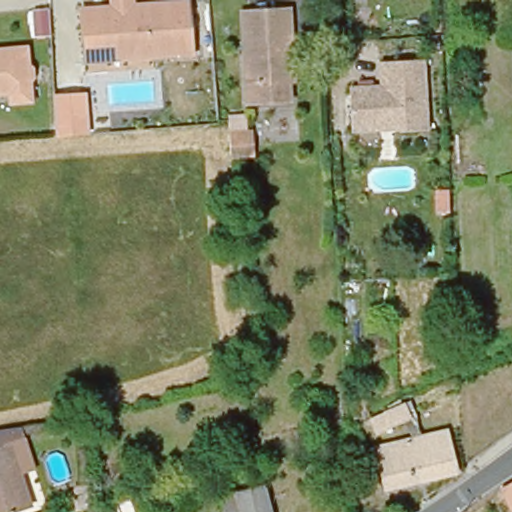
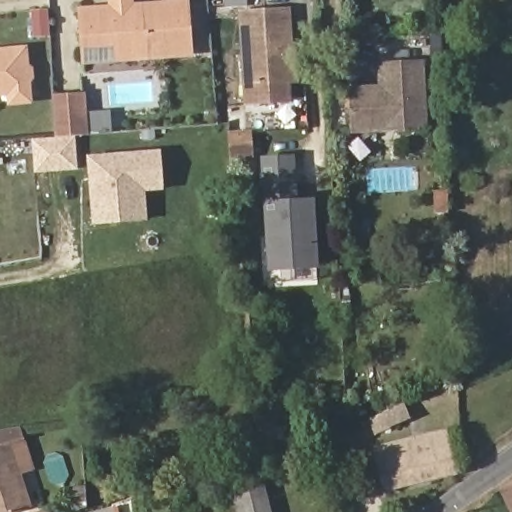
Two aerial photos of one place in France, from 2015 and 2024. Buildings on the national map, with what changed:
unchanged [(77,10),(108,7),(108,0),(127,0),(127,5),(182,1),(186,47),(187,52),(82,62),(80,44),(77,10)]
unchanged [(290,92),(256,94),(251,9),(250,1),(267,0),(284,0),(284,6),(286,40),(288,72),(290,92)]
unchanged [(37,40),(34,15),(50,14),(51,39),(37,40)]
unchanged [(24,66),(27,67),(28,78),(25,81),(27,100),(8,102),(6,92),(0,93),(0,50),(22,48),(24,66)]
unchanged [(426,129),(350,133),(348,85),(377,83),(376,60),(424,58),(426,129)]
unchanged [(59,139),(55,95),(86,91),(91,135),(59,139)]
unchanged [(229,137),(250,135),(251,159),(230,161),(229,137)]
new [(145,191),(147,220),(92,225),(86,155),(161,150),(165,190),(145,191)]
new [(265,201),(267,201),(262,157),(294,155),(298,199),(314,199),(318,268),(267,270),(265,201)]
unchanged [(377,439),(371,427),(397,412),(403,423),(377,439)]
unchanged [(25,418),(30,439),(35,467),(20,470),(29,505),(17,507),(0,511),(0,422),(11,420),(25,418)]
unchanged [(461,463),(393,488),(378,449),(446,425),(461,463)]
unchanged [(220,488),(267,470),(277,511),(275,512),(226,512),(220,488)]
unchanged [(500,487),(512,479),(512,512),(500,487)]

